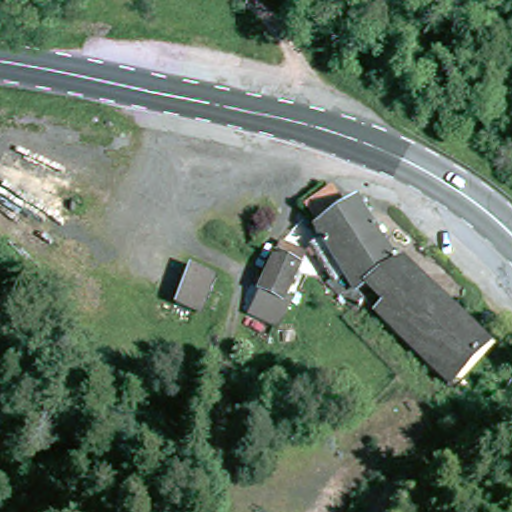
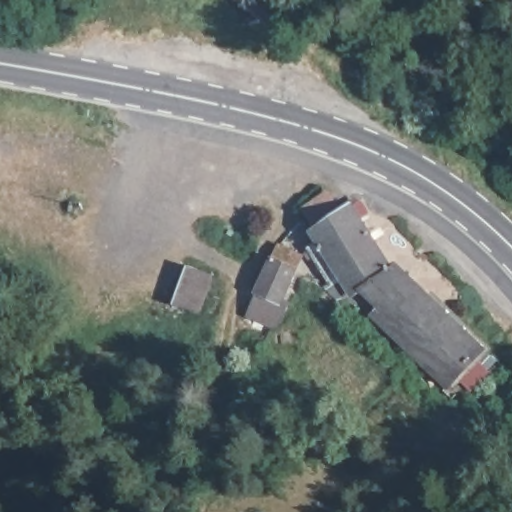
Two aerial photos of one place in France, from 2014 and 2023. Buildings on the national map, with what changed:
unchanged [(396,254),(405,250),(496,346),(458,383),(357,287),(343,290),(300,219),(356,196),(396,254)]
unchanged [(311,255),(277,327),(244,313),(280,241),(311,255)]

